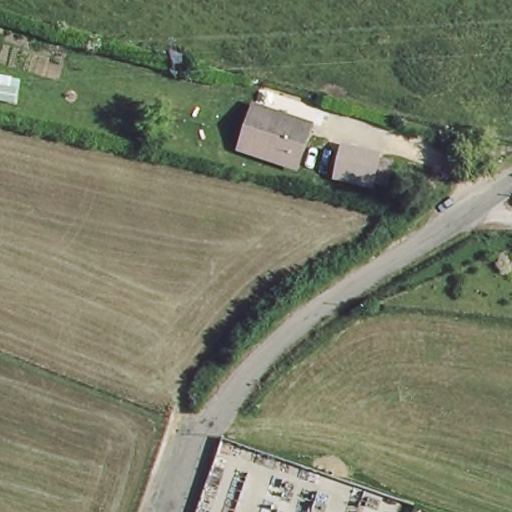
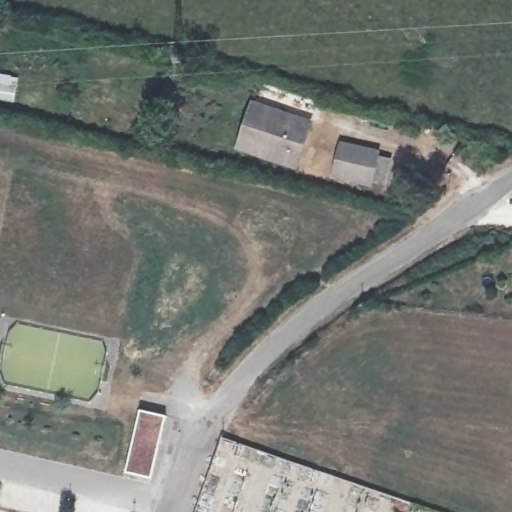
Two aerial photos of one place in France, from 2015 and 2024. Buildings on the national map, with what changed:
unchanged [(309,120),(295,162),(238,143),(253,100),(309,120)]
unchanged [(378,154),(370,185),(334,176),(342,145),(378,154)]
new [(140,410),(165,416),(151,478),(125,472),(140,410)]

